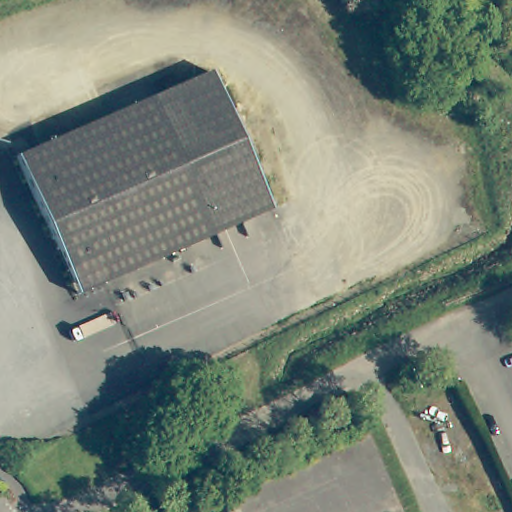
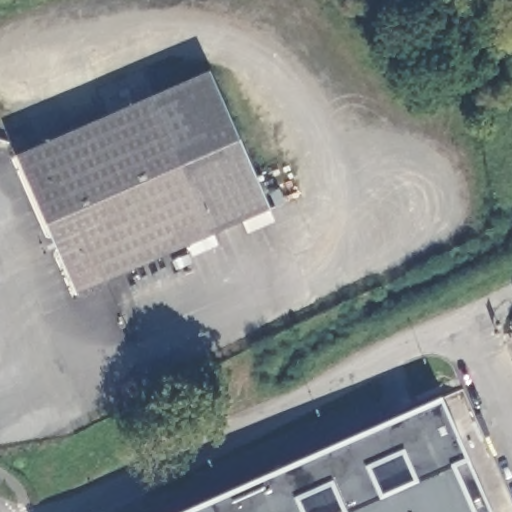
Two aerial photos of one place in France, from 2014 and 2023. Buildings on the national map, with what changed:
unchanged [(268,209),(75,295),(14,157),(207,71),(268,209)]
new [(467,461),(490,512),(187,512),(439,400),(467,461)]

